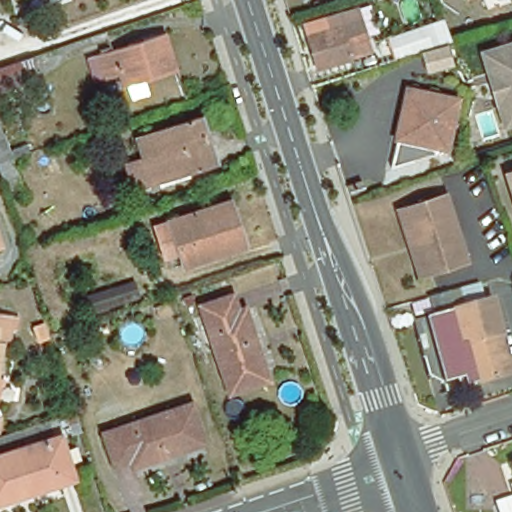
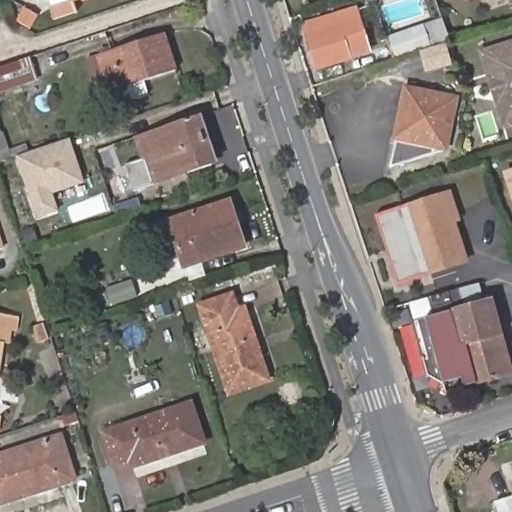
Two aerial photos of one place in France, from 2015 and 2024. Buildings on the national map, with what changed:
unchanged [(344,10),(346,17),(334,21),(344,56),(313,65),(300,25),(344,10)]
new [(436,25),(441,42),(394,57),(389,40),(436,25)]
unchanged [(174,70),(122,85),(118,73),(94,80),(86,60),(163,36),(174,70)]
unchanged [(512,43),(512,79),(509,68),(502,70),(494,48),(512,43)]
unchanged [(505,125),(497,97),(491,100),(486,81),(491,80),(483,52),(494,48),(502,70),(509,68),(512,79),(512,98),(506,100),(512,122),(505,125)]
unchanged [(31,79),(0,89),(0,66),(24,58),(31,79)]
unchanged [(436,147),(434,155),(388,167),(405,87),(457,97),(446,150),(436,147)]
unchanged [(506,100),(512,98),(512,122),(506,100)]
unchanged [(219,161),(137,190),(129,165),(146,158),(140,140),(204,117),(219,161)]
new [(26,144),(29,151),(0,162),(0,119),(9,150),(26,144)]
new [(70,139),(85,184),(54,195),(59,211),(38,219),(16,158),(70,139)]
unchanged [(506,174),(512,172),(512,194),(506,174)]
unchanged [(399,202),(444,187),(467,255),(422,270),(413,242),(409,230),(399,202)]
unchanged [(242,247),(183,266),(178,254),(164,257),(153,225),(227,201),(242,247)]
unchanged [(0,249),(0,232),(5,247),(0,249)]
unchanged [(88,321),(81,299),(93,294),(90,286),(128,275),(139,305),(88,321)]
unchanged [(464,345),(469,343),(480,384),(448,393),(446,385),(430,376),(414,321),(435,315),(430,297),(451,291),(457,311),(456,311),(464,345)]
unchanged [(267,380),(229,393),(199,307),(232,296),(237,311),(244,310),(267,380)]
unchanged [(457,311),(494,301),(512,367),(512,375),(480,384),(469,343),(464,345),(456,311),(457,311)]
unchanged [(204,442),(131,467),(129,461),(115,465),(104,435),(189,405),(204,442)]
unchanged [(0,503),(0,457),(59,438),(73,479),(0,503)]
unchanged [(510,466),(512,465),(512,472),(510,466)]
unchanged [(511,485),(512,485),(512,490),(511,485)]
unchanged [(512,499),(512,512),(499,512),(496,505),(512,499)]

